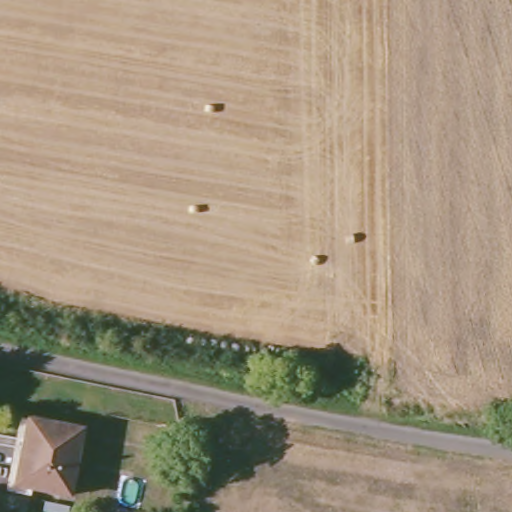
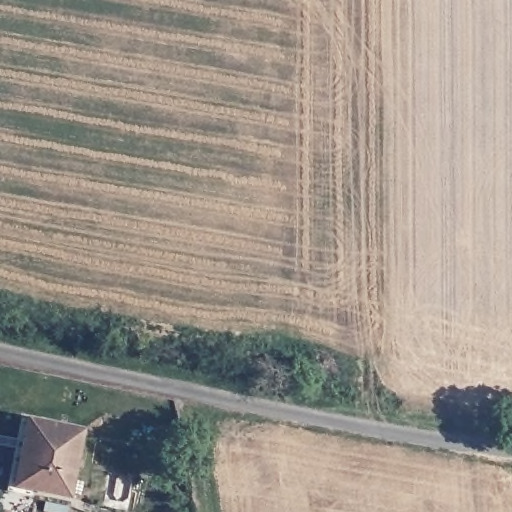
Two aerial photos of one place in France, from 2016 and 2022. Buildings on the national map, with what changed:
unchanged [(75,429),(63,493),(14,485),(25,420),(75,429)]

